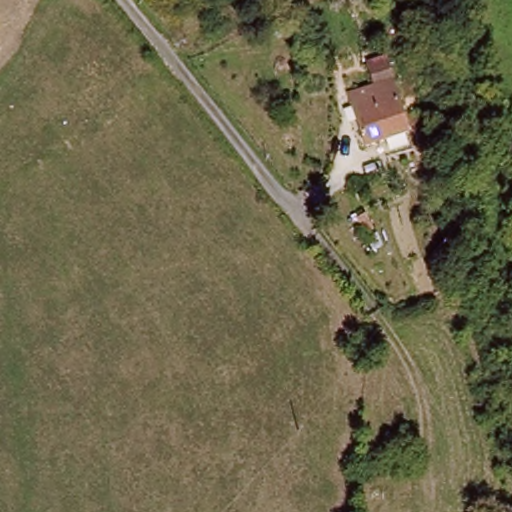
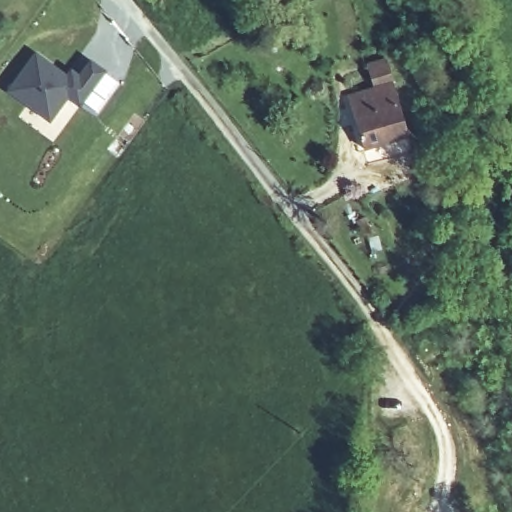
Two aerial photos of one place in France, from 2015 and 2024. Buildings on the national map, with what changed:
new [(80,107),(68,101),(50,125),(6,94),(36,52),(67,74),(71,68),(79,75),(91,57),(108,70),(80,107)]
unchanged [(361,154),(346,96),(375,85),(368,62),(386,57),(410,138),(361,154)]

